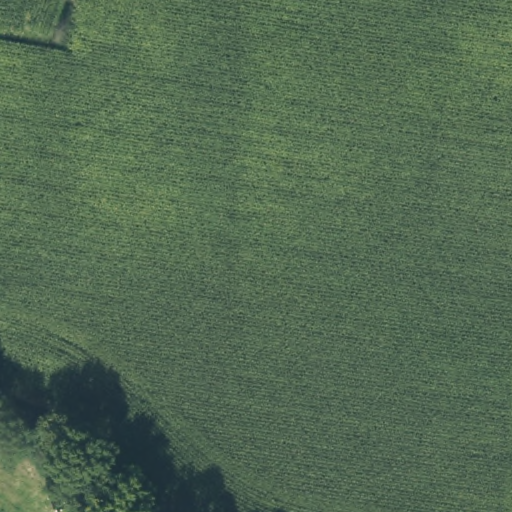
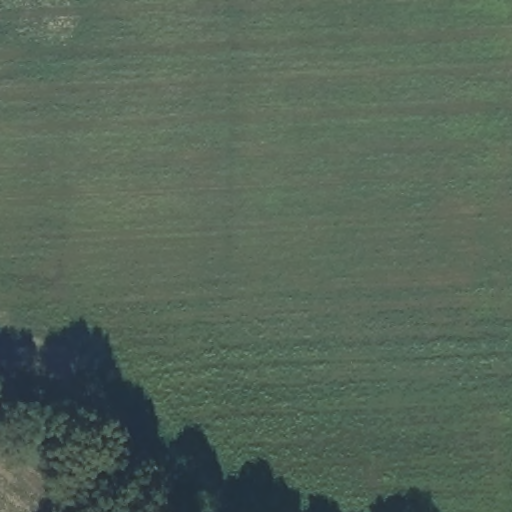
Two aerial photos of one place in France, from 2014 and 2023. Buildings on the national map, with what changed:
[]

